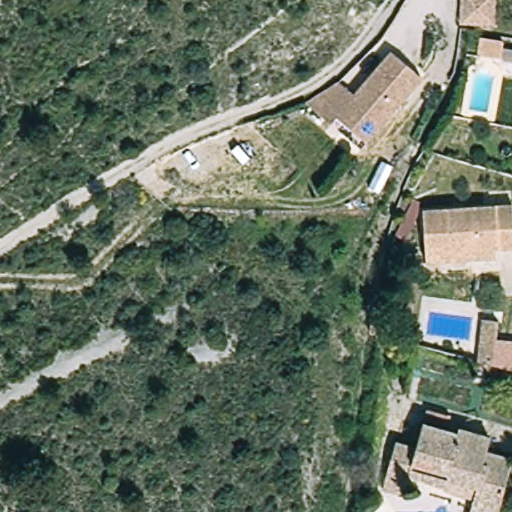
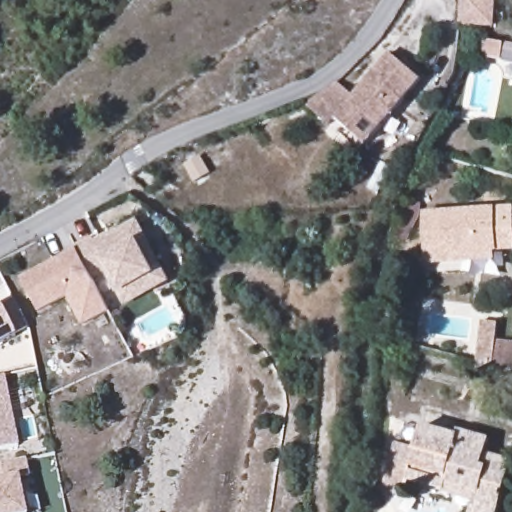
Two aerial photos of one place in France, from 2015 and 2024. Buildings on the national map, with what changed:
unchanged [(491,26),(458,24),(459,0),(492,0),(491,26)]
unchanged [(500,45),(497,59),(471,54),(475,40),(500,45)]
unchanged [(350,95),(395,44),(425,70),(361,145),(331,118),(325,125),(303,106),(332,81),(350,95)]
unchanged [(467,257),(467,268),(428,271),(426,259),(423,208),(512,202),(512,245),(493,245),(493,257),(467,257)]
new [(75,245),(91,237),(93,240),(138,217),(170,285),(125,307),(118,293),(107,272),(93,280),(76,247),(75,245)]
new [(76,247),(93,280),(110,312),(82,327),(66,297),(37,312),(20,277),(76,247)]
new [(26,326),(13,333),(15,337),(0,345),(0,307),(13,299),(26,326)]
new [(512,342),(512,371),(502,367),(476,365),(481,321),(498,322),(496,340),(512,342)]
new [(14,447),(0,450),(0,378),(3,377),(14,447)]
unchanged [(473,497),(444,487),(440,495),(408,483),(403,498),(380,492),(393,442),(414,447),(419,426),(453,436),(455,429),(487,438),(484,453),(512,462),(497,512),(468,512),(470,506),(473,497)]
new [(32,487),(22,489),(27,512),(0,512),(0,476),(29,470),(32,487)]

